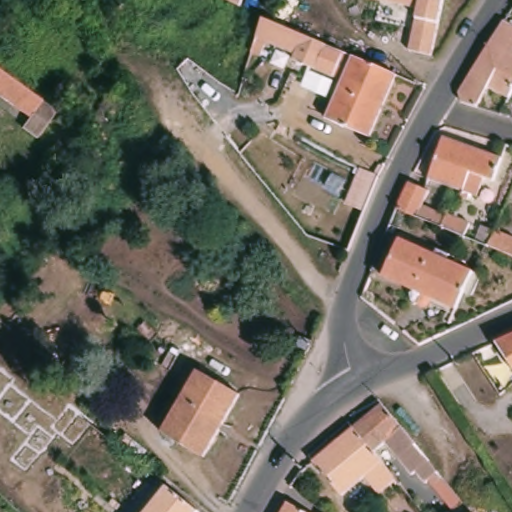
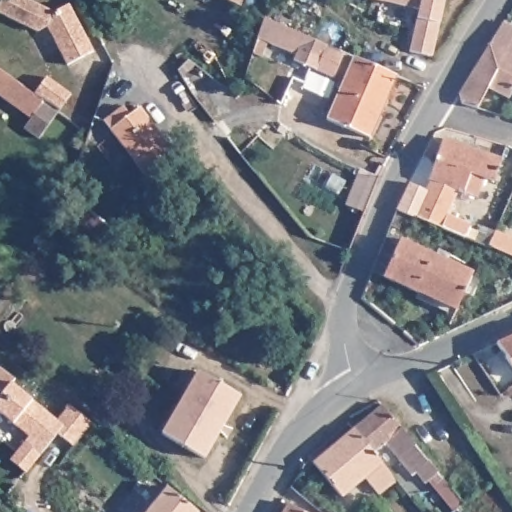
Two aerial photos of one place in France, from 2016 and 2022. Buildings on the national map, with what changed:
new [(32,0),(54,11),(69,3),(94,50),(68,64),(48,26),(39,30),(0,12),(0,2),(1,0),(32,0)]
unchanged [(243,0),(246,0),(246,1),(243,0)]
unchanged [(413,38),(415,25),(361,12),(363,0),(445,0),(435,43),(432,57),(409,52),(413,38)]
unchanged [(350,58),(392,79),(363,133),(322,113),(338,81),(311,67),(289,57),(292,51),(261,36),(257,52),(248,49),(253,33),(259,13),(281,24),(323,43),(324,43),(350,58)]
unchanged [(512,22),(512,87),(507,98),(486,91),(477,107),(460,100),(459,91),(505,18),(512,22)]
unchanged [(43,100),(58,110),(38,138),(23,128),(30,118),(0,96),(0,69),(31,91),(43,100)]
new [(46,75),(71,93),(59,109),(34,91),(46,75)]
new [(121,107),(129,116),(138,109),(170,148),(146,178),(103,122),(121,107)]
unchanged [(444,137),(501,158),(493,180),(483,178),(475,195),(471,194),(469,199),(461,196),(462,193),(429,179),(444,137)]
unchanged [(449,232),(397,210),(410,182),(428,191),(421,207),(468,226),(464,238),(449,232)]
unchanged [(488,249),(475,243),(482,226),(495,232),(512,239),(512,259),(488,249)]
unchanged [(402,236),(473,271),(452,311),(383,276),(402,236)]
unchanged [(0,258),(0,254),(1,254),(0,258)]
unchanged [(496,342),(512,335),(512,365),(496,342)]
unchanged [(307,352),(296,347),(300,337),(312,341),(307,352)]
new [(11,382),(56,419),(70,404),(91,422),(73,444),(58,432),(26,471),(10,458),(29,435),(0,411),(0,367),(14,378),(11,382)]
unchanged [(197,371),(239,394),(204,457),(161,433),(197,371)]
unchanged [(452,512),(447,512),(416,472),(413,474),(386,443),(374,452),(372,450),(353,428),(382,403),(429,460),(426,463),(460,505),(452,512)]
unchanged [(390,485),(386,480),(375,488),(365,479),(343,496),(312,462),(353,428),(372,450),(374,452),(395,478),(397,480),(390,485)]
unchanged [(197,511),(196,512),(145,512),(166,486),(197,511)]
unchanged [(287,502),(307,512),(281,512),(287,502)]

